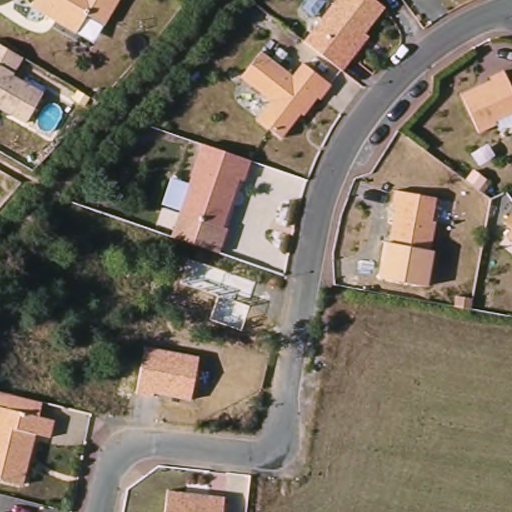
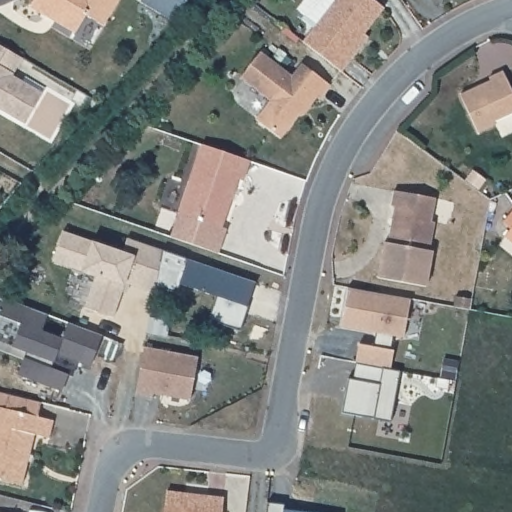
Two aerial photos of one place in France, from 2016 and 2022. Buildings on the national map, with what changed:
unchanged [(87,13),(77,31),(25,0),(118,0),(105,23),(87,13)]
unchanged [(352,56),(342,70),(337,66),(334,64),(330,60),(323,55),(320,53),(316,49),(308,43),(306,42),(304,40),(335,0),(378,0),(385,6),(365,32),(368,35),(352,56)]
unchanged [(23,122),(0,108),(0,44),(20,57),(10,74),(41,92),(23,122)]
unchanged [(302,109),(282,136),(257,117),(272,99),(242,75),(262,50),(293,75),(303,61),(331,83),(321,97),(317,95),(305,111),(302,109)]
unchanged [(512,89),(512,113),(495,121),(496,124),(478,132),(461,94),(492,80),(490,77),(504,71),(512,89)]
unchanged [(222,139),(252,149),(245,170),(240,168),(224,216),(229,218),(221,242),(212,240),(173,226),(205,133),(222,139)]
unchanged [(472,177),(485,186),(478,194),(467,185),(472,177)]
unchanged [(436,198),(432,221),(435,222),(430,251),(389,243),(396,205),(392,205),(396,190),(436,198)]
unchanged [(506,230),(512,223),(504,217),(512,207),(512,235),(506,230)]
new [(85,307),(94,275),(82,271),(54,261),(63,231),(92,241),(122,252),(127,238),(186,258),(177,283),(175,289),(157,286),(155,291),(124,282),(113,318),(85,307)]
unchanged [(376,276),(382,243),(389,243),(430,251),(433,252),(430,287),(376,276)]
unchanged [(209,320),(216,298),(177,283),(186,258),(257,282),(240,332),(209,320)]
new [(350,292),(412,303),(405,342),(395,340),(392,354),(395,355),(392,373),(357,366),(361,348),(375,350),(377,336),(342,330),(350,292)]
new [(57,352),(52,365),(67,371),(62,389),(17,374),(26,350),(14,346),(22,322),(2,316),(7,299),(47,314),(42,329),(62,338),(68,322),(102,335),(90,366),(57,352)]
unchanged [(470,315),(455,312),(457,300),(472,303),(470,315)]
unchanged [(154,393),(152,399),(135,394),(145,348),(199,359),(189,400),(154,393)]
new [(352,378),(354,366),(357,366),(392,373),(392,370),(401,371),(391,422),(342,412),(347,378),(352,378)]
unchanged [(12,393),(41,400),(37,415),(55,419),(50,436),(36,433),(23,483),(0,477),(0,405),(9,407),(12,393)]
unchanged [(222,512),(165,512),(167,490),(224,497),(222,512)]
new [(283,505),(283,510),(309,512),(267,512),(267,503),(283,505)]

